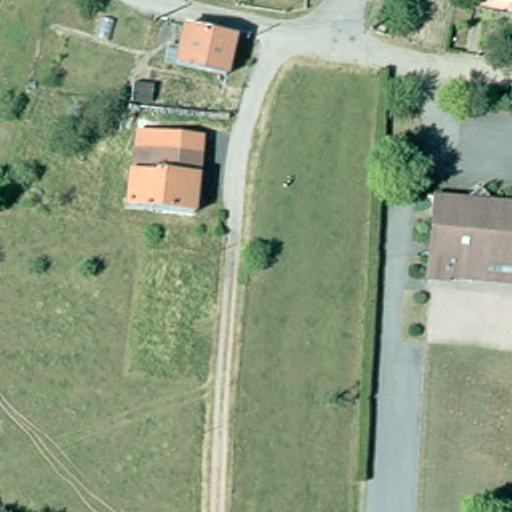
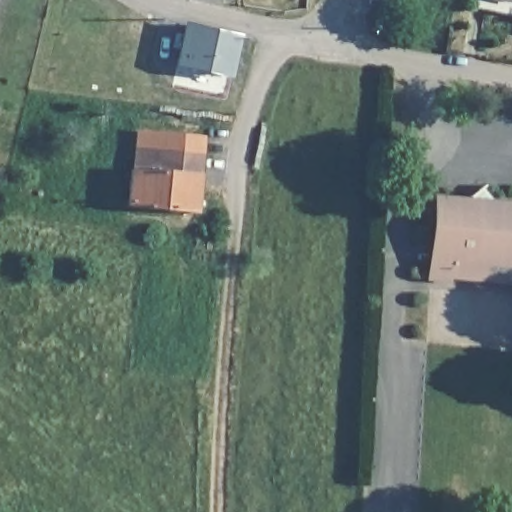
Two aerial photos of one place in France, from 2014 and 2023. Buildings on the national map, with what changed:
unchanged [(224,74),(165,54),(167,40),(182,43),(186,23),(235,36),(224,74)]
unchanged [(124,86),(140,88),(138,102),(122,100),(124,86)]
unchanged [(130,124),(155,129),(174,131),(197,136),(195,145),(189,205),(121,194),(125,158),(130,124)]
unchanged [(472,262),(470,276),(447,274),(446,280),(425,280),(429,193),(459,195),(477,180),(492,198),(512,199),(512,264),(472,262)]
unchanged [(470,276),(472,262),(512,264),(512,279),(470,276)]

